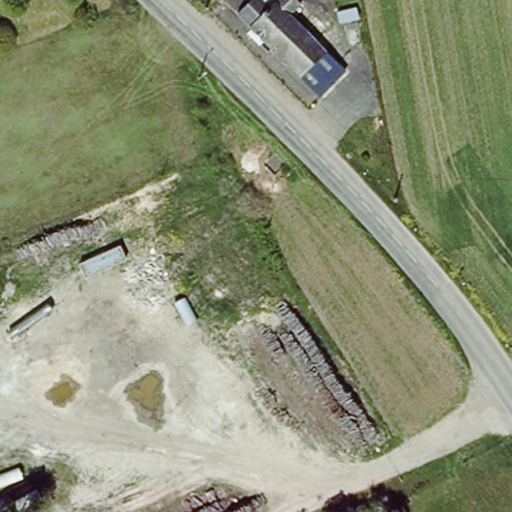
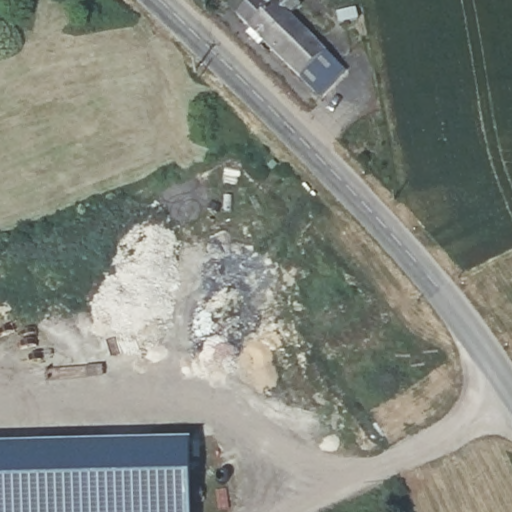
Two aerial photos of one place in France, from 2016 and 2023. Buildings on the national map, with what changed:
unchanged [(325,103),(302,81),(241,21),(261,1),(262,0),(284,0),(285,1),(286,0),(297,0),(305,9),(309,5),(336,31),(320,47),(329,56),(327,58),(346,75),(325,103)]
new [(190,444),(191,512),(0,512),(0,449),(190,444)]

